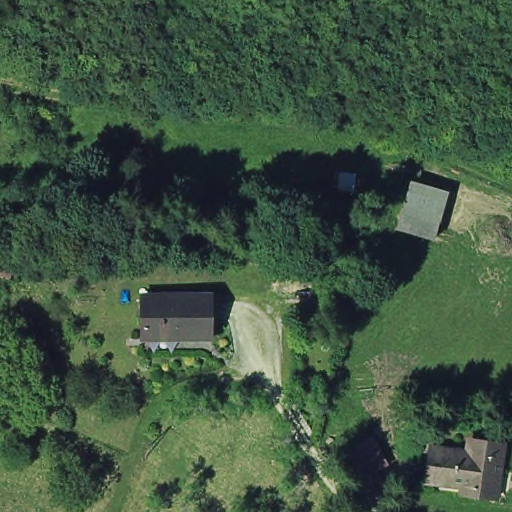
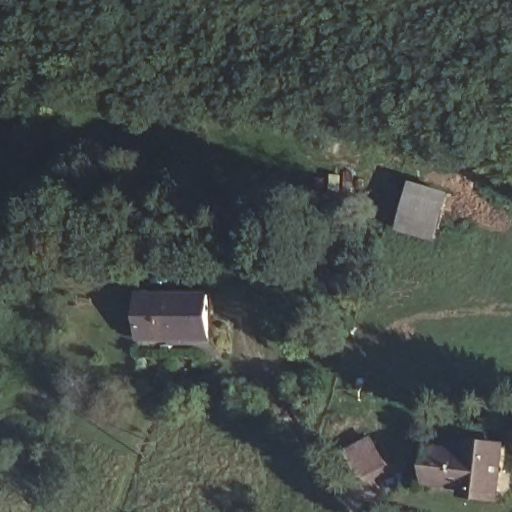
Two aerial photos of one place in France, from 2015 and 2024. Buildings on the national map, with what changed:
unchanged [(449,187),(434,238),(391,226),(408,178),(449,187)]
unchanged [(150,338),(144,337),(143,297),(213,294),(213,336),(150,338)]
unchanged [(499,494),(458,493),(459,485),(420,482),(427,443),(463,447),(465,432),(507,440),(499,494)]
new [(389,466),(360,480),(345,451),(373,436),(389,466)]

